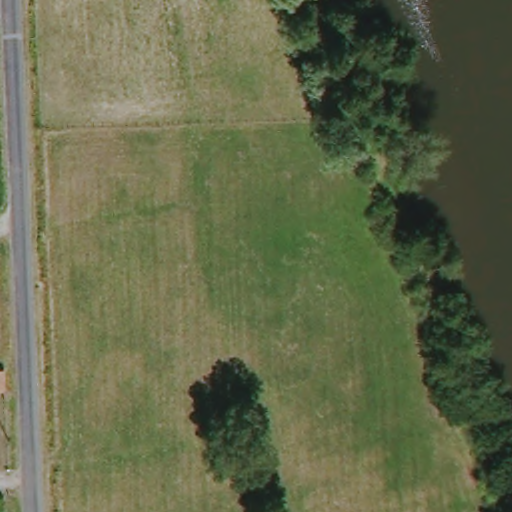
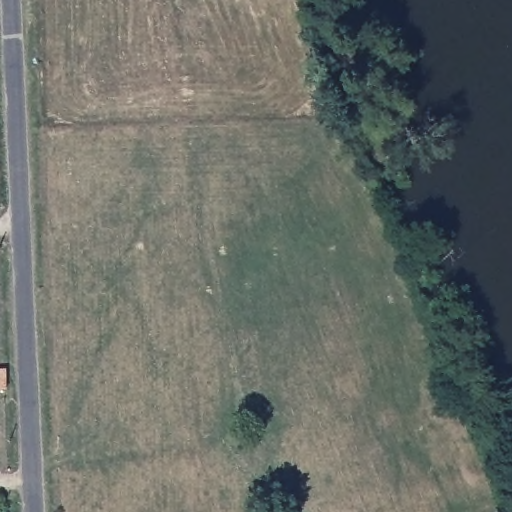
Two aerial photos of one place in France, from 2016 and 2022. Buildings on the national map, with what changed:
unchanged [(11,388),(0,388),(0,367),(10,367),(11,388)]

